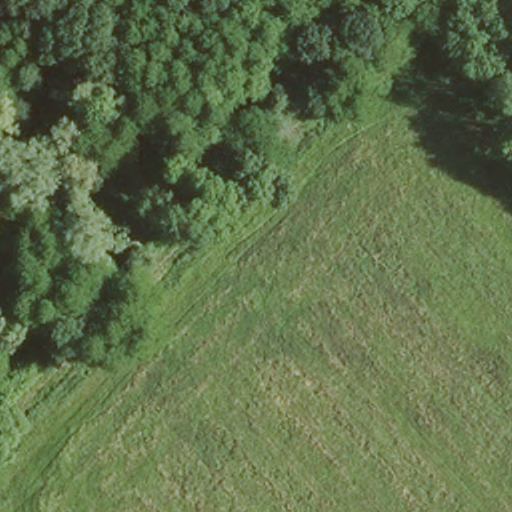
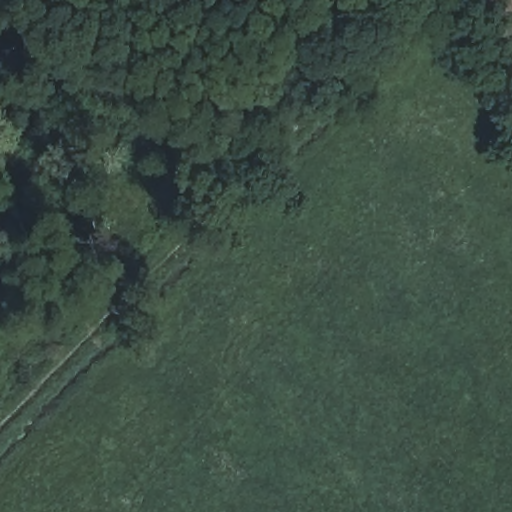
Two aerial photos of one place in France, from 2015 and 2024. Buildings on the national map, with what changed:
[]

